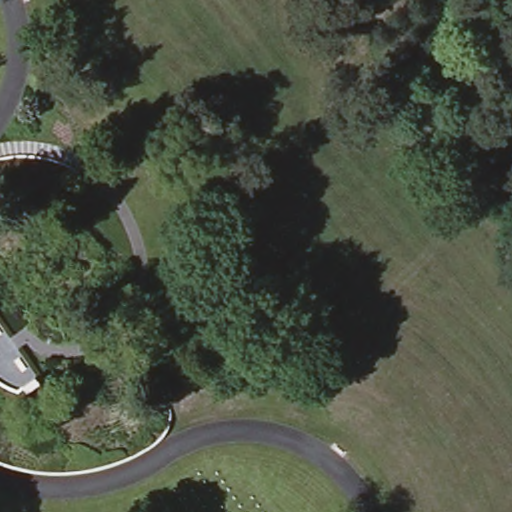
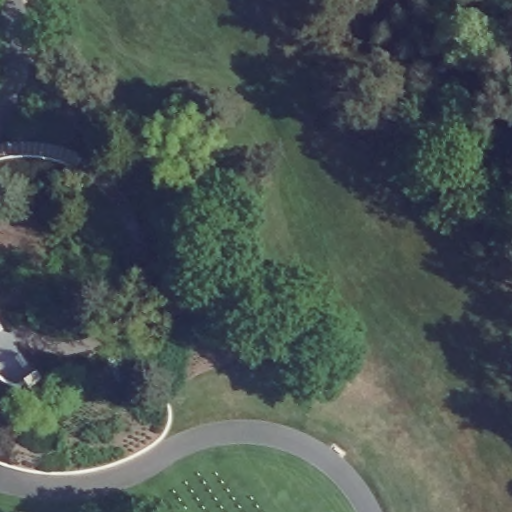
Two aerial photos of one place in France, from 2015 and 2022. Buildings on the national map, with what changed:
unchanged [(0,384),(0,332),(32,383),(4,386),(0,384)]

